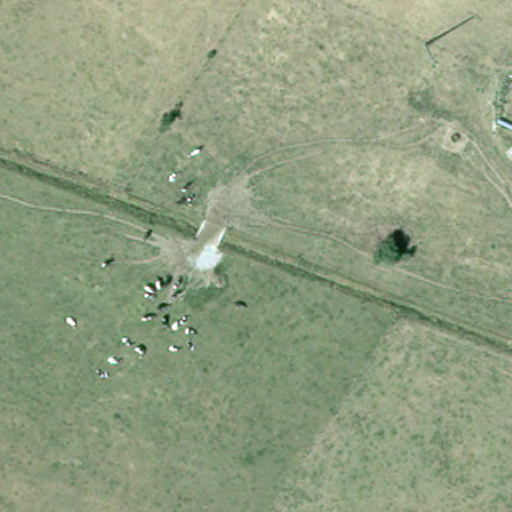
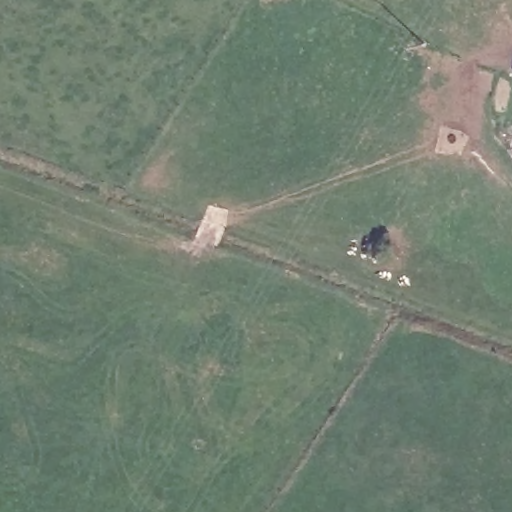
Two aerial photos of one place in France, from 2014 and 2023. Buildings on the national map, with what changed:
[]

